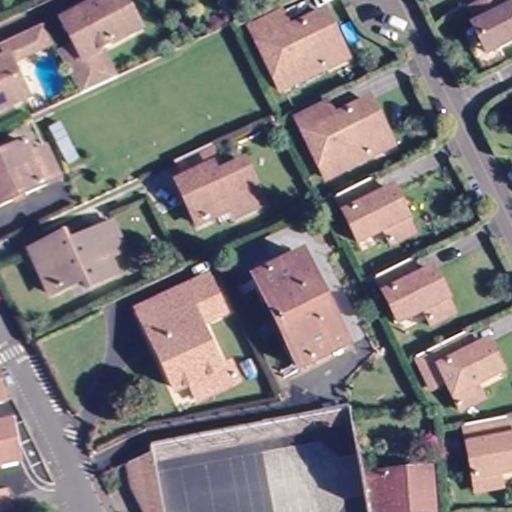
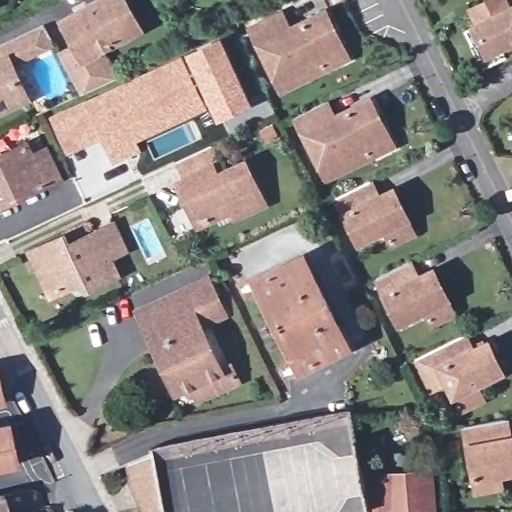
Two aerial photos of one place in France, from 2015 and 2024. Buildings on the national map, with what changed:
unchanged [(79,93),(57,54),(73,46),(62,23),(110,0),(135,0),(149,27),(144,29),(111,46),(123,72),(105,81),(79,93)]
unchanged [(473,25),(467,11),(489,0),(509,0),(512,5),(512,4),(512,41),(493,51),(485,55),(478,41),(470,26),(473,25)]
unchanged [(327,70),(282,91),(251,31),(283,16),(291,31),(325,15),(341,47),(347,60),(327,70)]
unchanged [(16,68),(7,46),(45,29),(57,50),(16,68)]
new [(254,105),(219,121),(187,54),(224,37),(254,105)]
unchanged [(16,68),(32,102),(0,116),(0,50),(7,46),(16,68)]
new [(182,56),(207,109),(137,141),(141,150),(112,163),(102,140),(67,154),(51,115),(182,56)]
unchanged [(368,156),(324,177),(293,116),(325,101),(333,118),(367,102),(382,134),(388,146),(368,156)]
unchanged [(185,179),(176,160),(211,143),(224,170),(242,161),(263,204),(235,218),(231,209),(198,225),(185,198),(177,182),(185,179)]
unchanged [(30,159),(45,152),(59,183),(0,210),(0,158),(24,147),(30,159)]
unchanged [(392,232),(367,244),(345,197),(376,181),(384,198),(398,191),(413,222),(420,234),(398,244),(392,232)]
unchanged [(51,296),(36,265),(29,250),(37,246),(60,236),(65,245),(112,223),(125,250),(107,258),(116,274),(86,288),(82,281),(67,288),(51,296)]
unchanged [(255,281),(303,256),(349,346),(301,369),(255,281)]
unchanged [(437,324),(430,310),(403,323),(382,278),(416,261),(423,276),(437,270),(452,300),(458,313),(437,324)]
unchanged [(232,381),(192,400),(185,384),(172,390),(135,309),(187,285),(204,319),(194,324),(214,369),(215,370),(225,365),(232,381)]
unchanged [(460,413),(454,401),(447,386),(433,393),(417,362),(467,337),(475,354),(488,348),(502,378),(476,390),(482,402),(460,413)]
unchanged [(12,404),(0,406),(0,368),(3,368),(6,379),(12,404)]
unchanged [(481,494),(478,482),(470,430),(510,422),(512,434),(512,476),(502,478),(505,490),(481,494)]
unchanged [(22,465),(0,470),(0,427),(12,424),(22,465)]
unchanged [(155,462),(164,512),(145,512),(135,489),(127,462),(154,453),(155,462)]
unchanged [(428,472),(431,512),(369,512),(363,476),(428,472)]
unchanged [(12,512),(0,512),(0,500),(7,498),(12,512)]

